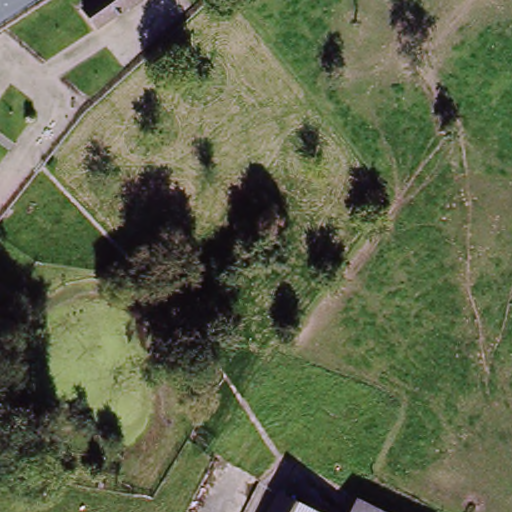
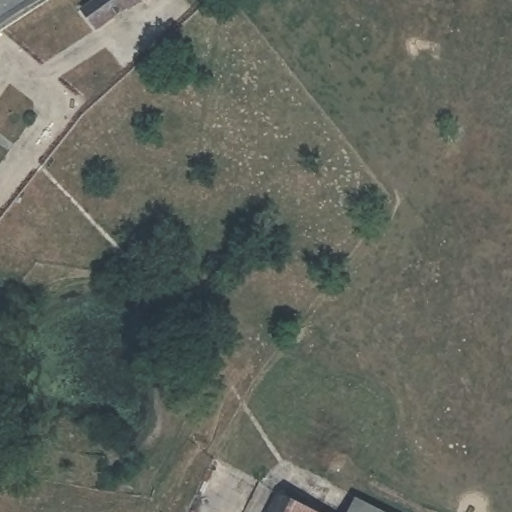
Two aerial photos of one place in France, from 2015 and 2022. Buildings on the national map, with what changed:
unchanged [(137,0),(92,27),(82,8),(94,0),(137,0)]
unchanged [(280,502),(298,512),(276,512),(280,502)]
unchanged [(365,512),(360,512),(361,510),(365,512)]

